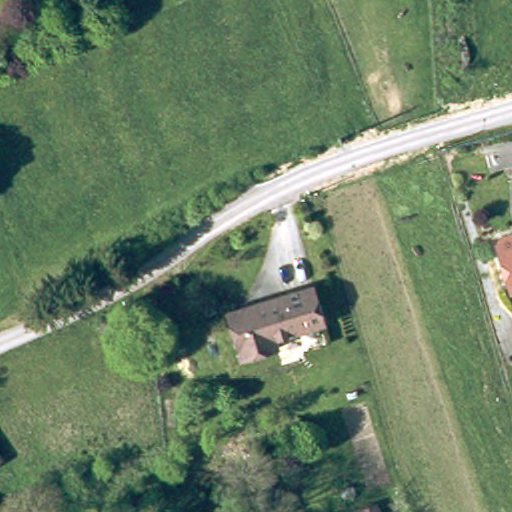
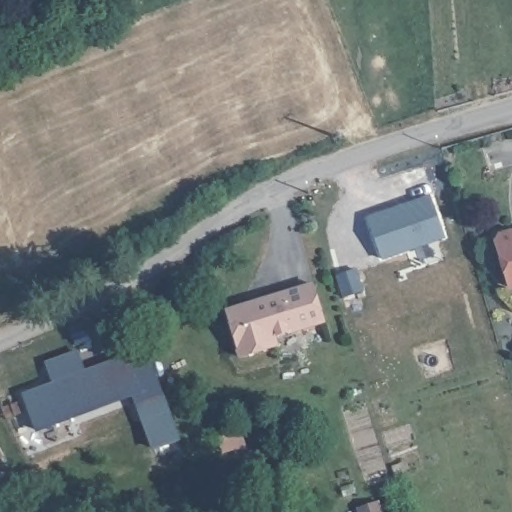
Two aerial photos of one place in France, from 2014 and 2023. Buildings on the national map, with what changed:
unchanged [(497,237),(500,234),(504,233),(508,233),(512,234),(512,288),(495,241),(497,237)]
unchanged [(229,312),(312,285),(322,320),(275,334),(279,346),(241,357),(229,312)]
new [(180,440),(152,450),(133,397),(36,433),(21,395),(52,382),(43,362),(78,348),(87,370),(146,348),(180,440)]
unchanged [(2,455),(0,456),(0,452),(2,455)]

